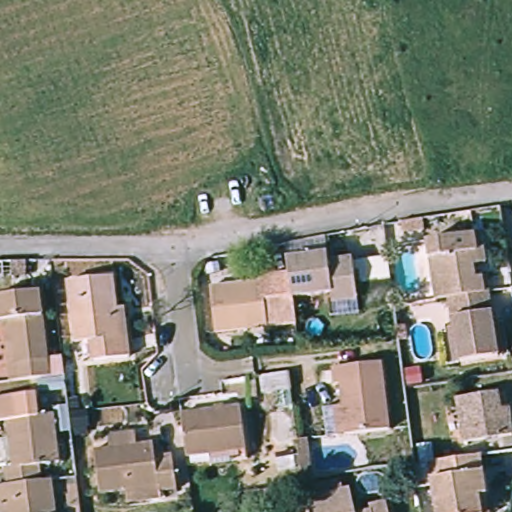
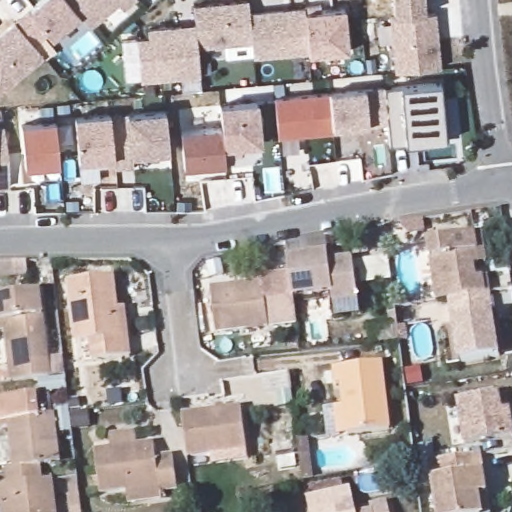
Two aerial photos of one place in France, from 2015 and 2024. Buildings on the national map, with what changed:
new [(41,0),(68,0),(80,14),(52,37),(48,33),(34,45),(15,22),(41,0)]
new [(122,7),(117,2),(90,25),(80,14),(68,0),(131,0),(122,7)]
new [(425,14),(395,17),(393,0),(424,0),(425,14)]
new [(249,1),(250,14),(252,42),(198,47),(196,26),(194,6),(249,1)]
new [(321,5),(321,11),(360,7),(364,50),(309,55),(309,51),(305,9),(304,6),(321,5)]
new [(305,9),(309,51),(254,56),(252,42),(250,14),(305,9)]
new [(395,17),(425,14),(436,13),(441,67),(396,72),(391,17),(395,17)]
new [(34,45),(44,56),(0,92),(0,35),(15,22),(34,45)]
new [(148,38),(148,30),(196,26),(198,47),(200,74),(141,80),(137,40),(148,38)]
new [(407,145),(390,146),(388,123),(385,88),(441,82),(446,136),(416,139),(416,144),(407,145)]
new [(385,88),(388,123),(333,128),(330,93),(385,88)]
new [(330,93),(333,128),(333,132),(279,137),(275,99),(330,93)]
new [(257,102),(261,144),(241,145),(242,154),(225,156),(222,127),(220,106),(257,102)]
new [(166,112),(170,152),(133,155),(134,167),(116,169),(115,165),(111,117),(166,112)]
new [(111,116),(111,117),(115,165),(99,166),(99,161),(79,162),(75,119),(111,116)]
new [(56,122),(60,164),(25,166),(22,126),(56,122)]
new [(222,127),(225,156),(226,168),(209,170),(209,166),(184,168),(181,131),(222,127)]
new [(7,187),(0,188),(0,129),(2,129),(7,187)]
unchanged [(426,227),(429,244),(408,247),(406,230),(426,227)]
unchanged [(478,240),(486,239),(490,270),(484,271),(478,272),(480,284),(486,283),(490,301),(452,307),(442,308),(432,247),(478,240)]
unchanged [(292,267),(331,262),(332,269),(357,267),(362,307),(336,311),(335,300),(296,305),(292,267)]
unchanged [(112,316),(119,315),(125,365),(87,369),(84,348),(70,350),(63,289),(107,283),(112,316)]
unchanged [(289,333),(221,341),(215,297),(267,290),(266,285),(282,283),(289,333)]
unchanged [(4,336),(0,336),(0,302),(41,297),(52,382),(10,387),(4,336)]
unchanged [(490,301),(492,300),(504,363),(462,370),(452,307),(490,301)]
unchanged [(338,410),(348,408),(345,387),(339,388),(337,371),(386,366),(394,432),(351,437),(343,438),(338,410)]
unchanged [(501,417),(509,417),(512,441),(512,442),(464,450),(456,405),(497,398),(501,417)]
unchanged [(208,472),(206,462),(186,465),(181,422),(239,415),(245,457),(226,459),(227,470),(208,472)]
unchanged [(8,492),(2,445),(10,443),(7,425),(53,421),(59,470),(39,472),(41,488),(8,492)]
unchanged [(180,491),(164,493),(164,501),(131,506),(129,493),(104,496),(100,455),(158,447),(160,461),(176,458),(180,491)]
unchanged [(310,457),(313,482),(303,483),(300,459),(310,457)]
unchanged [(487,512),(436,512),(429,471),(478,463),(487,512)]
unchanged [(1,512),(1,511),(0,511),(0,493),(8,492),(41,488),(53,487),(56,512),(1,512)]
unchanged [(353,491),(358,512),(311,512),(309,500),(353,491)]
unchanged [(372,512),(371,507),(388,504),(389,512),(372,512)]

